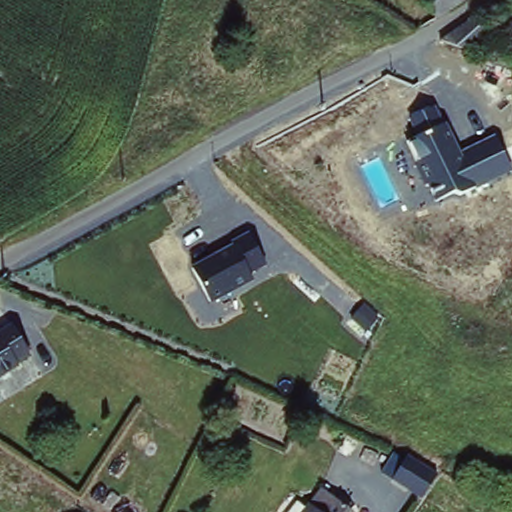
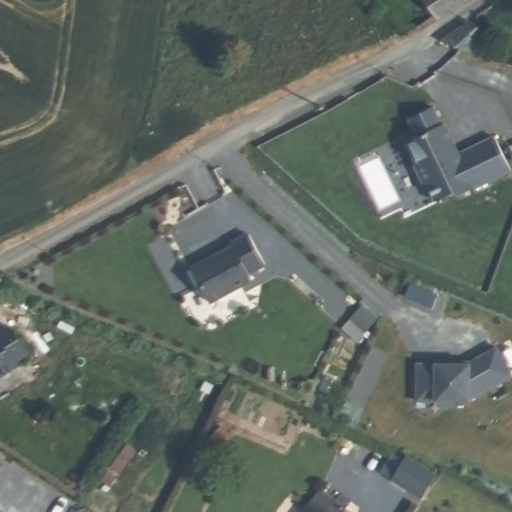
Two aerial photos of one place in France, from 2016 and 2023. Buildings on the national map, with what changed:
unchanged [(452,9),(431,21),(418,0),(467,0),(452,9)]
unchanged [(497,17),(467,49),(443,42),(474,7),(497,17)]
unchanged [(405,142),(419,136),(410,117),(434,106),(443,126),(447,124),(460,154),(496,137),(511,172),(460,196),(455,195),(436,202),(405,142)]
unchanged [(189,267),(252,235),(268,264),(250,274),(253,282),(210,302),(189,267)]
unchanged [(22,352),(10,362),(11,366),(0,373),(0,329),(7,324),(22,352)]
new [(452,365),(452,362),(471,362),(497,348),(512,376),(512,377),(469,400),(469,402),(416,401),(418,363),(452,365)]
unchanged [(408,455),(439,473),(423,499),(393,479),(408,455)]
unchanged [(345,512),(299,512),(319,483),(348,507),(345,512)]

